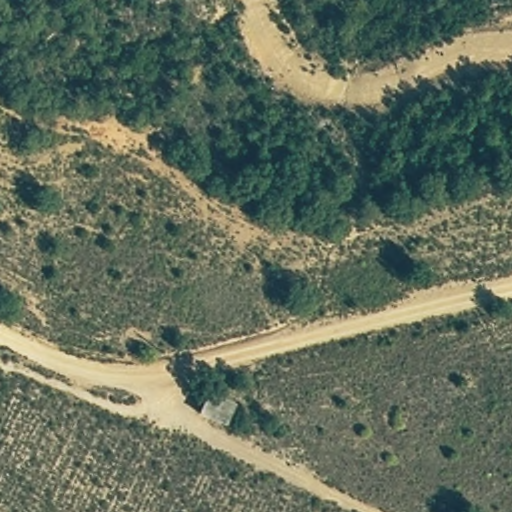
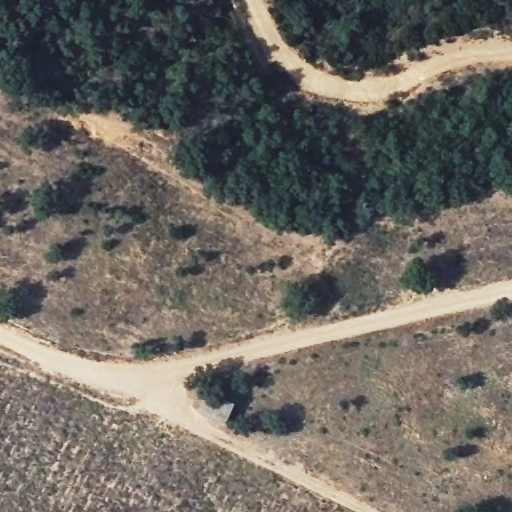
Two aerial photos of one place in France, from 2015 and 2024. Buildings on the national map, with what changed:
unchanged [(194,410),(202,388),(232,402),(222,422),(194,410)]

